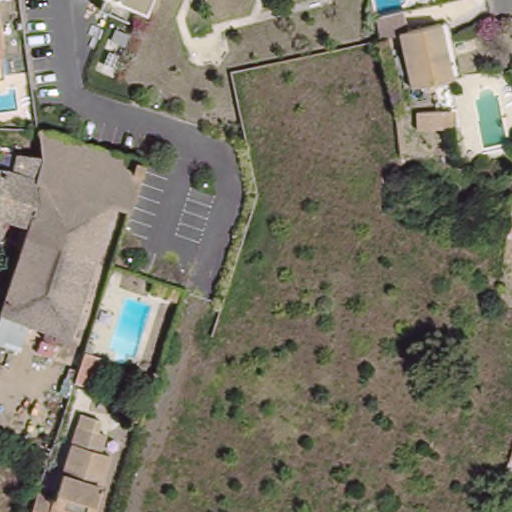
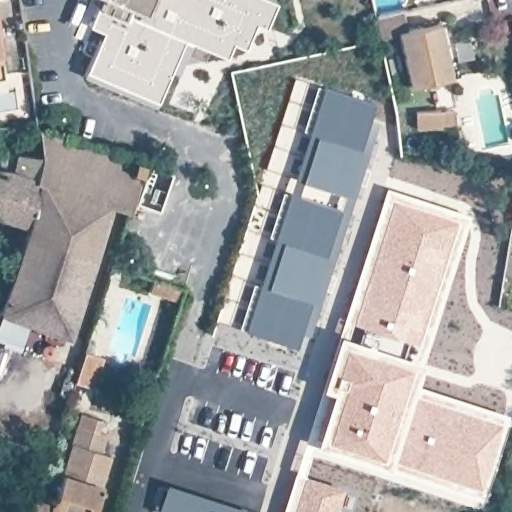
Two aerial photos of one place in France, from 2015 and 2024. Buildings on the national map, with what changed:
new [(277,3),(267,28),(257,24),(246,49),(232,43),(226,57),(186,40),(157,107),(84,75),(103,32),(89,26),(101,0),(115,0),(143,12),(148,0),(270,0),(277,3)]
unchanged [(143,12),(114,0),(148,0),(143,12)]
unchanged [(463,71),(414,84),(404,30),(454,20),(463,71)]
new [(253,283),(257,284),(264,266),(282,210),(307,155),(304,154),(310,135),(306,133),(318,86),(377,102),(369,129),(374,131),(357,185),(347,210),(317,303),(296,348),(239,328),(253,283)]
unchanged [(455,109),(456,127),(441,128),(417,128),(416,111),(440,110),(455,109)]
unchanged [(42,123),(151,159),(137,204),(116,197),(74,331),(7,307),(34,224),(50,176),(41,172),(45,153),(42,123)]
unchanged [(34,224),(9,213),(0,212),(0,164),(17,165),(22,150),(45,153),(41,172),(50,176),(34,224)]
new [(345,321),(386,186),(421,196),(467,214),(415,352),(412,351),(408,360),(339,334),(345,321)]
new [(329,392),(320,388),(339,334),(408,360),(414,362),(398,415),(382,463),(314,442),(329,392)]
new [(83,351),(103,357),(93,388),(73,381),(83,351)]
new [(413,391),(502,420),(479,491),(414,467),(389,461),(413,391)]
unchanged [(59,490),(81,423),(110,431),(105,447),(114,450),(104,480),(101,487),(97,500),(93,512),(32,512),(41,485),(59,490)]
new [(345,489),(337,512),(291,512),(303,476),(345,489)]
new [(256,512),(157,512),(167,483),(256,512)]

